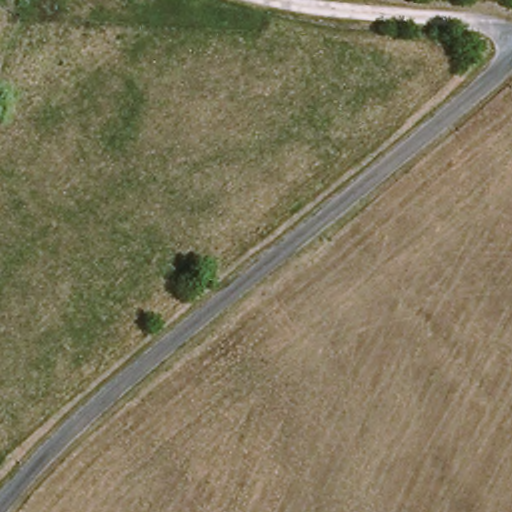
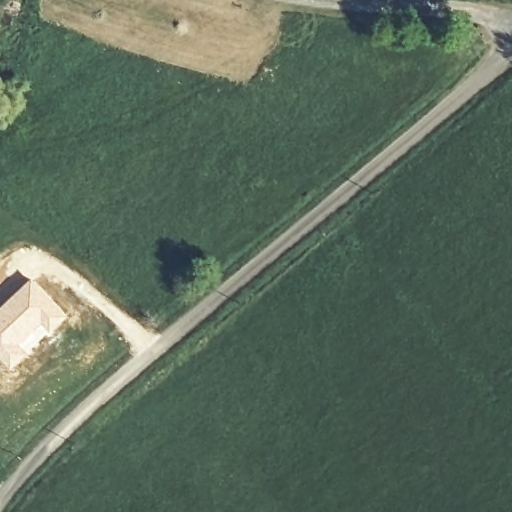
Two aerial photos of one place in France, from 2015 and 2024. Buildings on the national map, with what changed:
new [(67,316),(10,370),(0,359),(0,307),(31,278),(67,316)]

